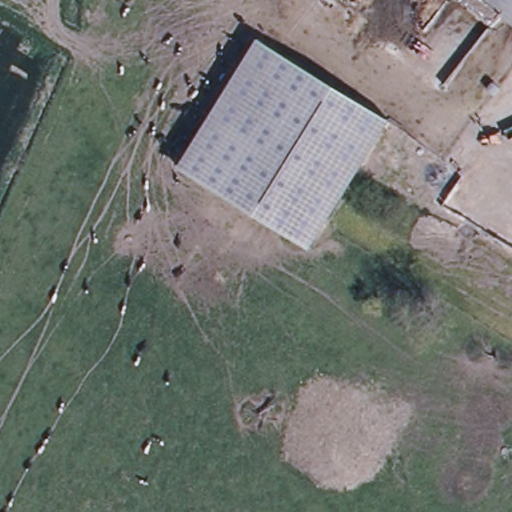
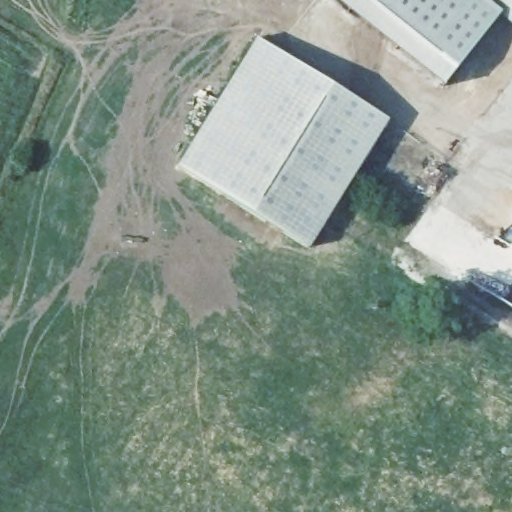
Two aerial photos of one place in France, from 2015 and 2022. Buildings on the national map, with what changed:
new [(445,85),(334,0),(482,0),(500,14),(445,85)]
unchanged [(500,14),(482,0),(512,0),(512,10),(505,18),(500,14)]
unchanged [(512,10),(512,23),(505,18),(512,10)]
unchanged [(260,35),(287,51),(218,152),(197,138),(194,136),(260,35)]
unchanged [(302,243),(178,164),(197,138),(218,152),(287,51),(391,119),(378,139),(360,165),(325,217),(307,246),(302,243)]

